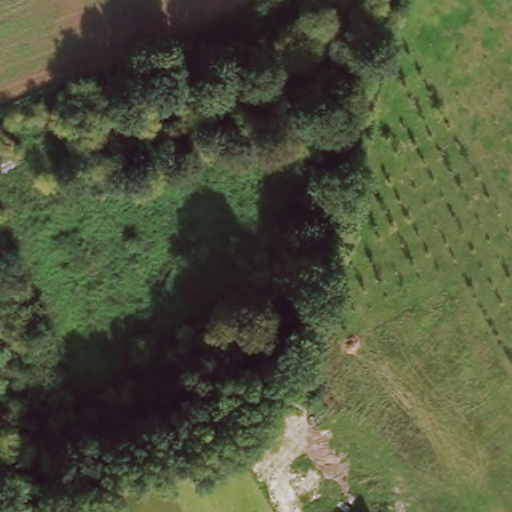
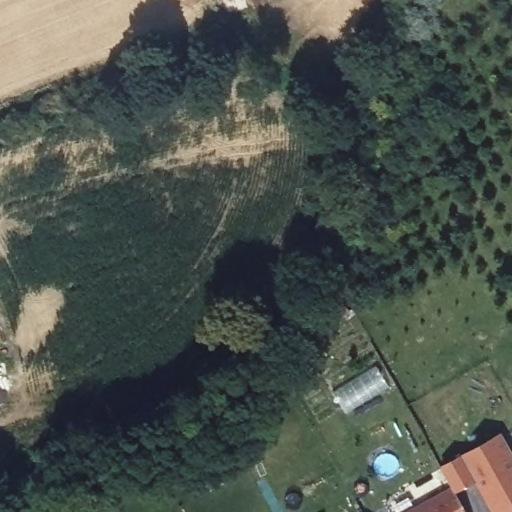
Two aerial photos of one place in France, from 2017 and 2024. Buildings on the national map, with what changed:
new [(477,483),(456,491),(442,466),(503,432),(512,448),(512,511),(511,512),(493,512),(477,483)]
new [(466,512),(405,512),(452,487),(466,512)]

